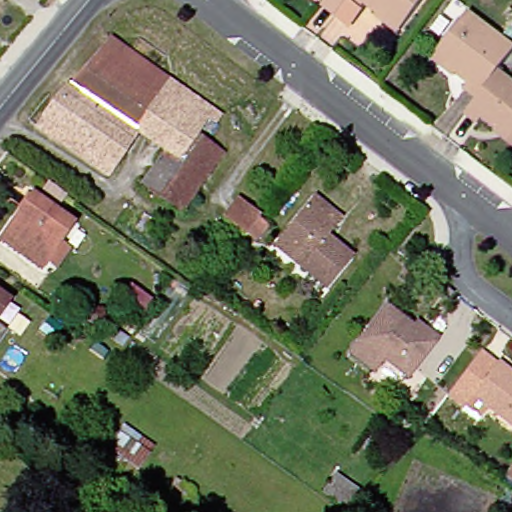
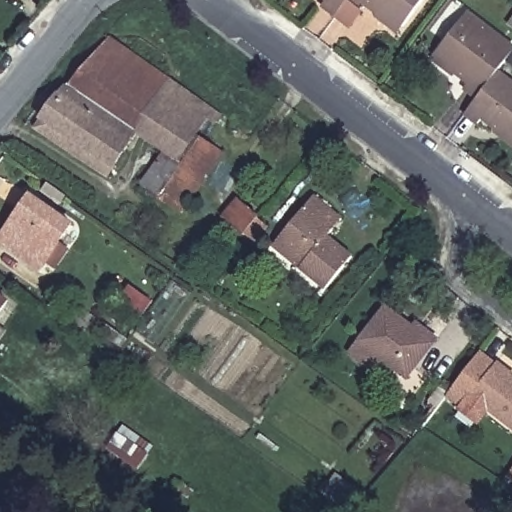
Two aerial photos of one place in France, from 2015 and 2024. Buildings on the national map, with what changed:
unchanged [(341,15),(328,5),(332,0),(352,0),(341,15)]
unchanged [(407,27),(385,10),(382,13),(371,4),(366,9),(353,0),(428,0),(407,27)]
unchanged [(466,73),(468,70),(446,53),(477,11),(512,38),(512,64),(507,70),(487,98),(474,88),(478,83),(466,73)]
unchanged [(76,66),(85,73),(116,37),(226,115),(221,123),(216,119),(204,136),(230,154),(190,211),(147,185),(172,148),(143,129),(119,165),(47,117),(62,100),(54,93),(76,66)]
unchanged [(507,70),(512,73),(512,128),(508,125),(506,128),(493,118),(488,124),(475,113),(487,98),(507,70)]
unchanged [(70,240),(55,261),(50,268),(10,240),(42,194),(82,222),(70,240)]
unchanged [(347,219),(332,236),(357,256),(331,289),(307,268),(311,263),(283,238),(318,195),(347,219)]
unchanged [(254,234),(234,217),(247,200),(268,217),(254,234)]
unchanged [(14,300),(0,319),(0,290),(14,300)]
unchanged [(438,342),(412,377),(387,358),(378,369),(356,352),(392,306),(417,326),(438,342)]
unchanged [(13,331),(0,349),(0,321),(13,331)]
unchanged [(490,351),(512,369),(512,419),(498,408),(487,421),(472,409),(474,406),(457,394),(490,351)]
unchanged [(155,445),(138,469),(107,447),(124,424),(155,445)]
unchanged [(346,510),(320,490),(327,480),(330,481),(336,472),(361,490),(346,510)]

